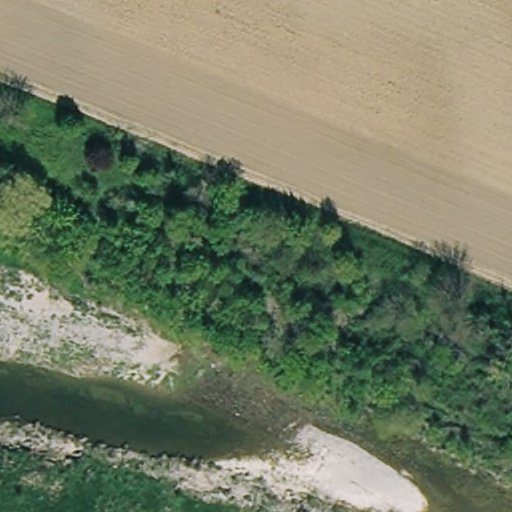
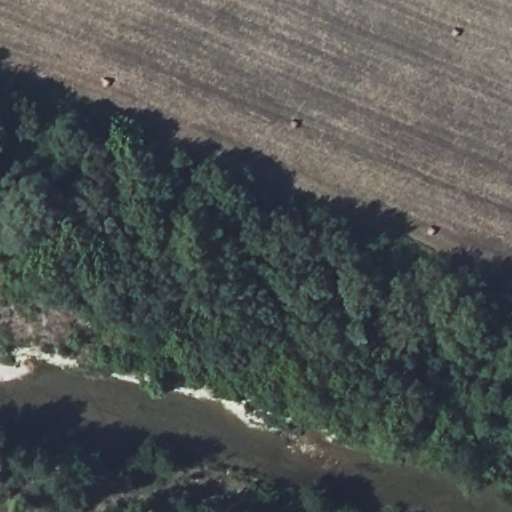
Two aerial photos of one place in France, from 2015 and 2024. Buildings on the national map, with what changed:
[]

